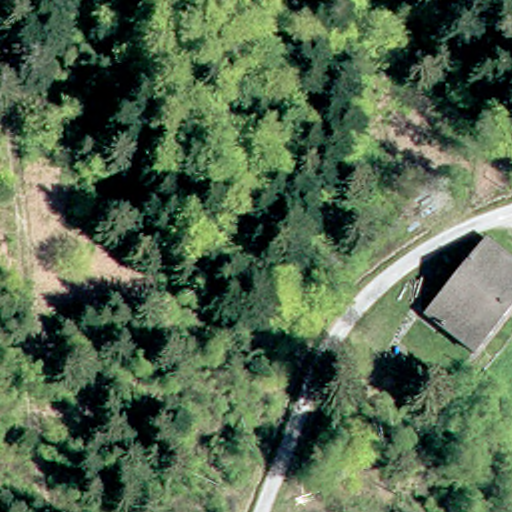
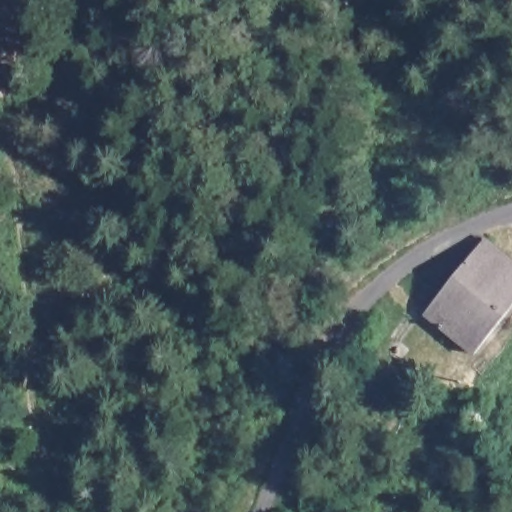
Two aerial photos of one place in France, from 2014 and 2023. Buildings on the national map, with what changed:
unchanged [(469,257),(484,239),(512,263),(512,308),(472,354),(426,314),(473,260),(469,257)]

